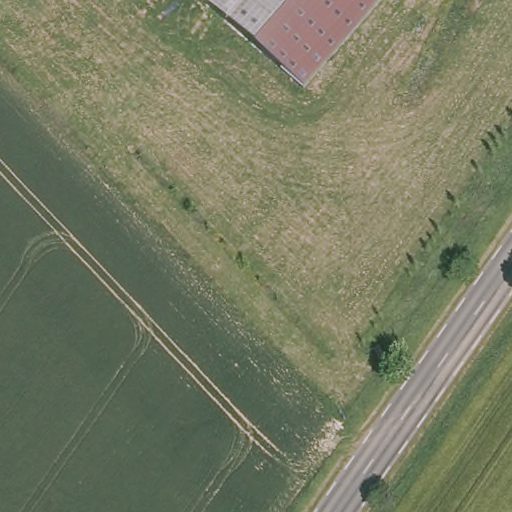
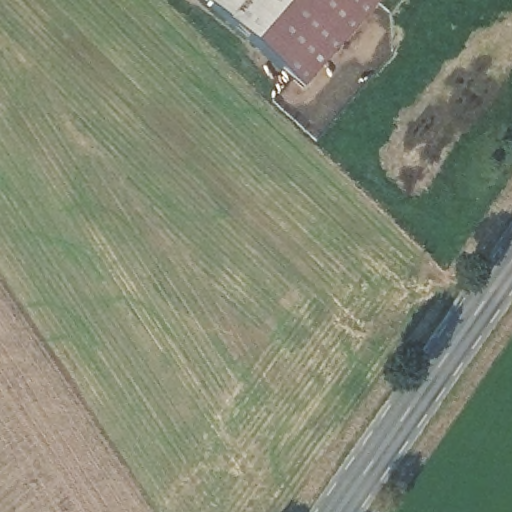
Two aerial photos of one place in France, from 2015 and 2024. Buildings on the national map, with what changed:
unchanged [(383,0),(303,90),(201,0),(383,0)]

